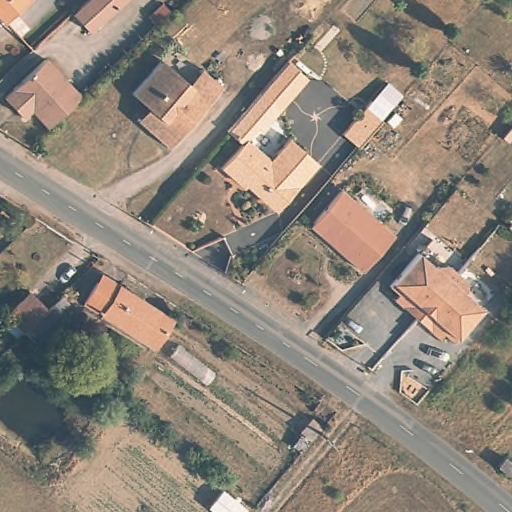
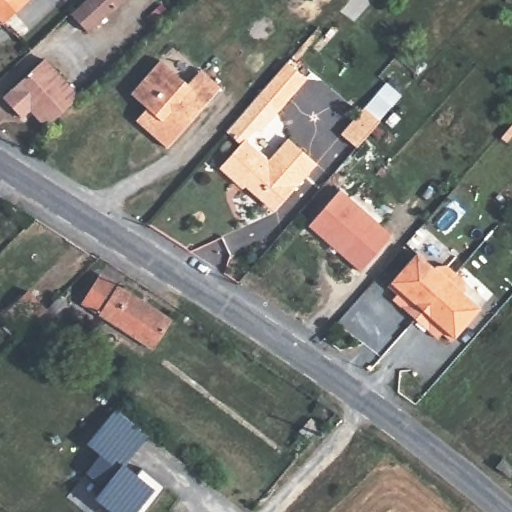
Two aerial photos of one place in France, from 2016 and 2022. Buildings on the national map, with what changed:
unchanged [(6,18),(0,12),(0,0),(26,0),(6,18)]
unchanged [(89,0),(122,0),(101,20),(86,4),(89,0)]
unchanged [(159,95),(143,82),(171,47),(199,71),(212,56),(232,74),(221,87),(180,135),(154,113),(148,108),(159,95)]
unchanged [(48,124),(31,105),(24,110),(8,93),(48,57),(81,93),(48,124)]
unchanged [(304,77),(258,132),(253,129),(243,142),(226,130),(285,60),(304,77)]
unchanged [(365,140),(350,128),(365,110),(374,101),(389,114),(365,140)]
unchanged [(240,185),(235,180),(221,169),(243,142),(260,150),(271,159),(290,137),(303,147),(262,195),(243,181),(240,185)]
unchanged [(303,147),(319,160),(278,205),(262,195),(303,147)]
unchanged [(342,191),(393,235),(363,271),(312,227),(342,191)]
unchanged [(487,303),(458,335),(442,321),(438,327),(406,300),(410,297),(392,280),(422,247),(437,261),(451,256),(469,270),(475,282),(469,287),(487,303)]
unchanged [(160,348),(91,305),(109,278),(178,321),(160,348)]
unchanged [(60,296),(73,310),(70,313),(38,344),(24,333),(5,314),(29,291),(46,308),(54,301),(60,296)]
new [(154,431),(131,462),(143,471),(149,464),(173,482),(151,512),(125,512),(104,496),(112,485),(93,470),(106,453),(93,442),(120,405),(154,431)]

